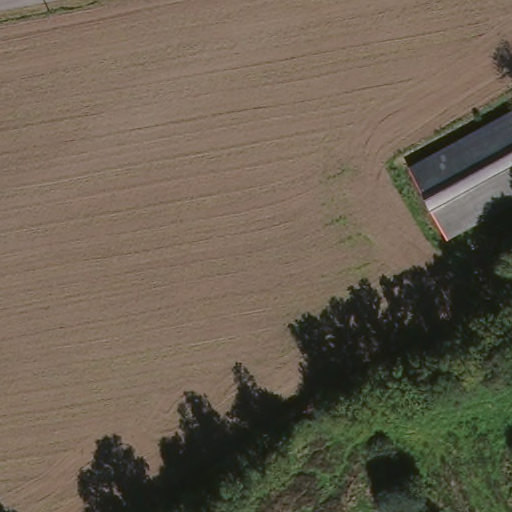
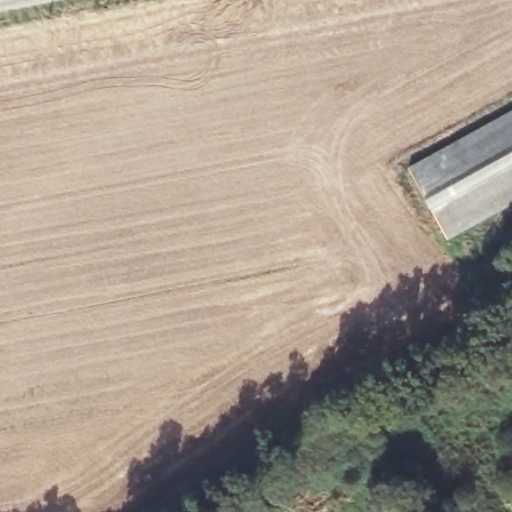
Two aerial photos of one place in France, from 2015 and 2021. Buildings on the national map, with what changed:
unchanged [(405,171),(512,112),(512,202),(442,240),(405,171)]

